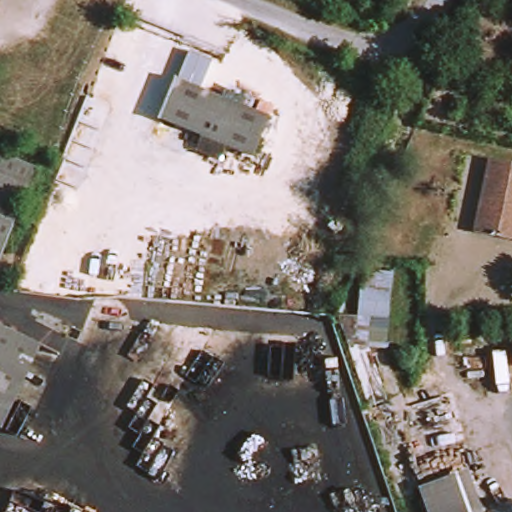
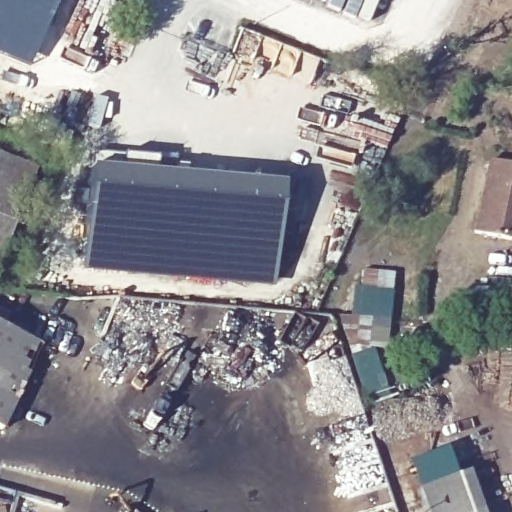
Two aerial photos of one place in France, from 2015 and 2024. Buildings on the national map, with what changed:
demolished [(160,118),(176,81),(267,118),(252,155),(160,118)]
new [(92,93),(109,98),(99,130),(80,125),(92,93)]
new [(272,288),(82,271),(90,167),(93,154),(122,155),(155,159),(154,172),(281,184),(272,288)]
unchanged [(3,261),(0,259),(0,155),(39,170),(12,239),(3,261)]
unchanged [(490,166),(512,169),(512,240),(477,234),(490,166)]
unchanged [(389,348),(374,347),(390,400),(367,408),(341,317),(360,316),(366,271),(397,272),(389,348)]
unchanged [(6,427),(0,424),(0,330),(37,345),(16,399),(6,427)]
unchanged [(422,491),(467,476),(480,512),(430,512),(422,491)]

